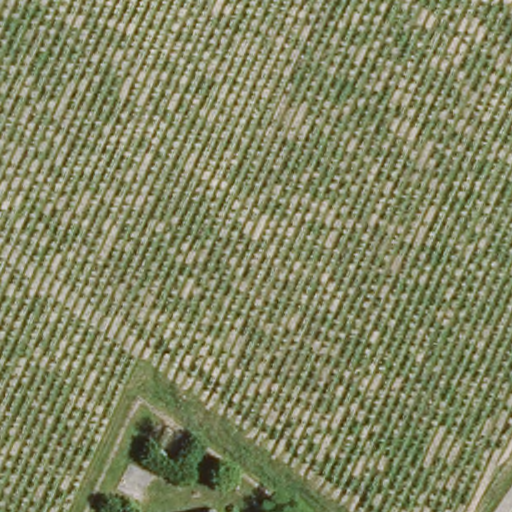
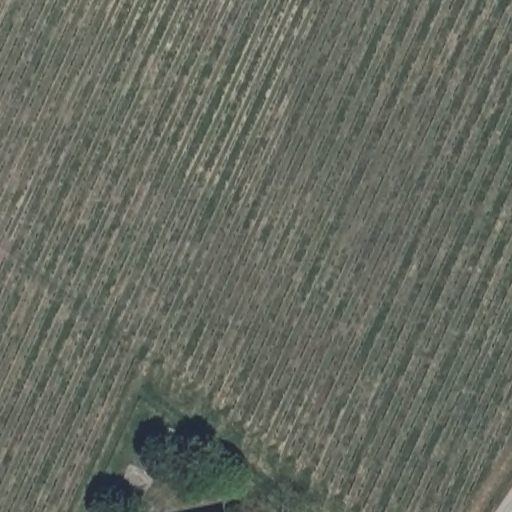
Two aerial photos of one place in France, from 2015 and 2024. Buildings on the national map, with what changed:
unchanged [(217,506),(218,512),(203,512),(203,508),(217,506)]

